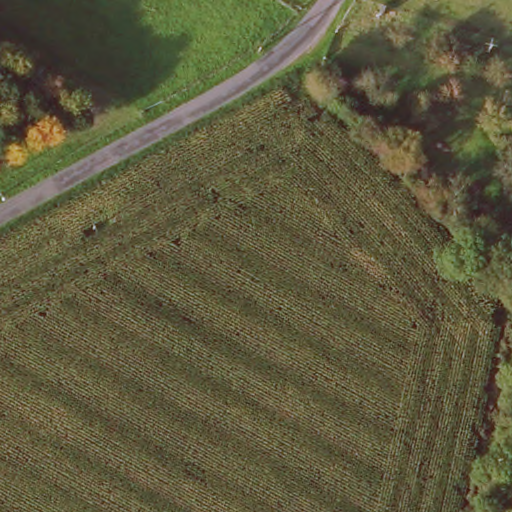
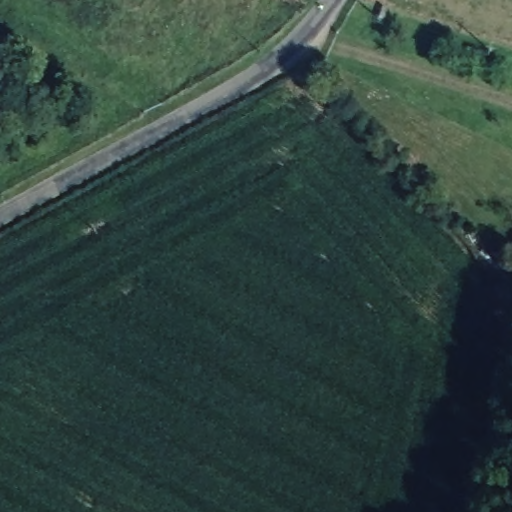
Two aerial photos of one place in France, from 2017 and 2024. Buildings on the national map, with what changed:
unchanged [(386,9),(381,17),(377,16),(381,6),(386,9)]

